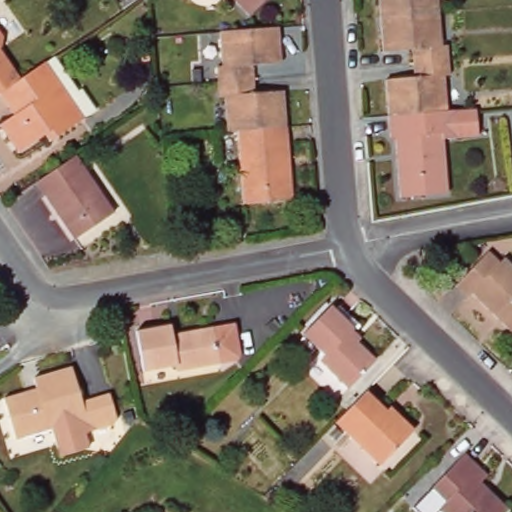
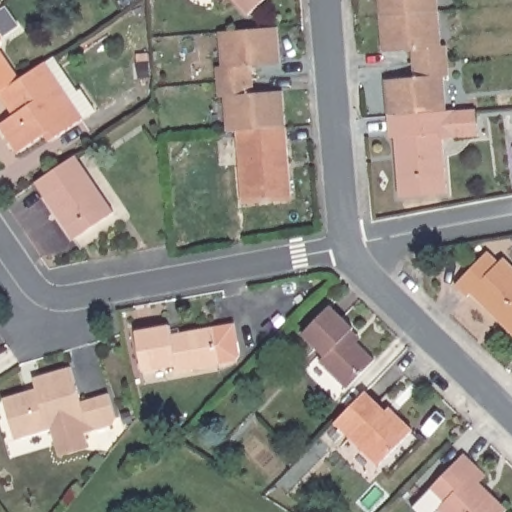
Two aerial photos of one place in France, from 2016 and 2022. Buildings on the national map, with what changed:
unchanged [(236,0),(260,0),(247,12),(236,0)]
unchanged [(438,0),(438,7),(380,12),(380,0),(438,0)]
unchanged [(438,7),(442,42),(447,41),(449,72),(444,72),(447,106),(388,112),(385,75),(414,72),(412,45),(383,48),(380,12),(438,7)]
unchanged [(236,126),(227,127),(225,93),(219,94),(217,63),(222,63),(219,28),(277,24),(280,61),(251,62),(253,90),(283,88),(286,122),(236,126)]
unchanged [(0,41),(0,31),(2,35),(0,41)]
unchanged [(0,87),(0,46),(19,74),(0,87)]
unchanged [(18,149),(0,124),(0,120),(11,112),(0,96),(0,87),(19,74),(44,57),(52,52),(77,87),(80,86),(95,107),(54,135),(49,139),(43,132),(18,149)]
unchanged [(456,105),(476,103),(479,132),(458,135),(443,136),(448,190),(399,194),(394,135),(389,135),(388,112),(447,106),(456,105)]
unchanged [(292,196),(242,200),(236,126),(286,122),(292,196)]
unchanged [(74,152),(112,209),(73,236),(34,179),(74,152)]
unchanged [(499,258),(503,255),(512,263),(512,331),(470,291),(466,293),(454,282),(488,247),(499,258)]
unchanged [(354,324),(349,329),(376,356),(347,384),(320,357),(325,352),(303,330),(332,302),(354,324)]
unchanged [(177,332),(217,324),(239,321),(246,357),(224,361),(181,368),(180,363),(147,368),(139,327),(175,322),(177,332)]
unchanged [(2,393),(35,383),(33,374),(71,363),(82,398),(109,390),(117,416),(113,422),(84,430),(87,439),(83,446),(67,451),(57,444),(52,425),(16,436),(2,393)]
unchanged [(396,422),(400,420),(412,432),(379,466),(335,422),(365,392),(396,422)]
unchanged [(503,512),(445,512),(438,505),(443,499),(430,486),(465,450),(487,472),(481,479),(492,491),(508,507),(503,512)]

